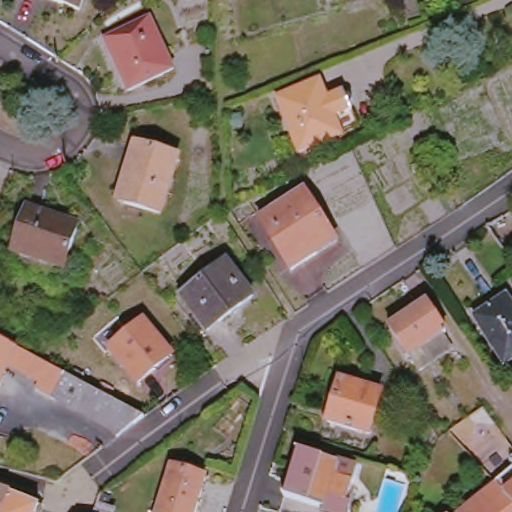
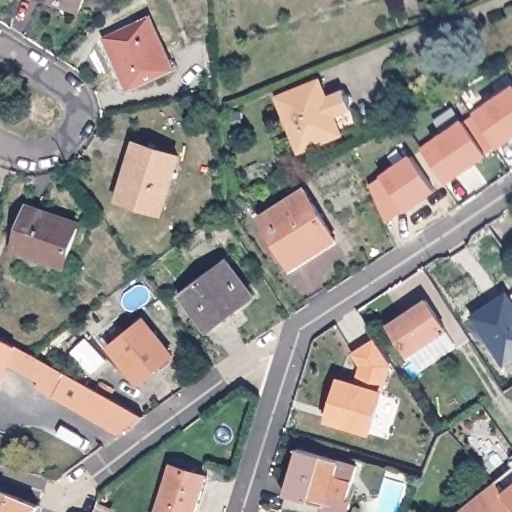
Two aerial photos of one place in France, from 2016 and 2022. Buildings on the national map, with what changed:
unchanged [(80,11),(49,0),(83,0),(80,11)]
unchanged [(179,70),(133,91),(109,39),(155,18),(179,70)]
unchanged [(358,130),(350,135),(342,137),(342,139),(300,156),(278,104),(320,86),(326,102),(344,95),(346,100),(347,100),(349,100),(350,100),(351,100),(352,101),(352,102),(353,103),(354,105),(354,106),(353,108),(352,109),(352,110),(351,110),(350,110),(358,130)]
new [(511,142),(499,150),(472,114),(485,106),(512,87),(512,141),(511,142)]
new [(487,157),(459,175),(445,185),(421,149),(434,140),(462,120),(487,157)]
unchanged [(161,215),(118,201),(136,144),(179,157),(161,215)]
new [(435,191),(407,210),(387,224),(371,186),(382,176),(412,155),(435,191)]
unchanged [(318,254),(292,270),(260,218),(305,190),(332,235),(337,242),(318,254)]
unchanged [(64,267),(13,250),(28,207),(79,225),(64,267)]
unchanged [(208,330),(182,296),(227,261),(254,295),(208,330)]
unchanged [(415,366),(405,350),(404,351),(385,321),(422,296),(442,326),(439,328),(449,343),(415,366)]
unchanged [(512,304),(512,360),(505,365),(474,317),(507,296),(512,304)]
unchanged [(172,357),(139,384),(111,348),(145,321),(172,357)]
unchanged [(0,393),(0,335),(21,346),(0,393)]
unchanged [(96,392),(82,416),(60,404),(60,405),(41,393),(44,388),(27,377),(37,360),(96,392)]
unchanged [(370,434),(328,422),(341,380),(382,392),(370,434)]
unchanged [(150,422),(126,440),(82,416),(96,392),(150,422)]
unchanged [(337,512),(284,495),(299,450),(356,467),(342,512),(337,512)]
unchanged [(158,512),(172,467),(206,477),(195,512),(158,512)]
unchanged [(497,485),(496,484),(496,482),(512,469),(512,503),(497,485)]
unchanged [(497,485),(512,503),(512,512),(462,512),(496,485),(497,485)]
unchanged [(4,512),(0,512),(0,491),(12,495),(4,512)]
unchanged [(4,512),(12,495),(40,506),(38,512),(4,512)]
unchanged [(110,512),(94,512),(97,507),(110,512)]

